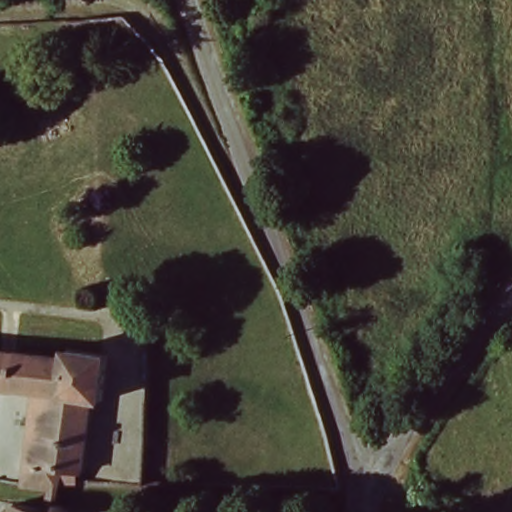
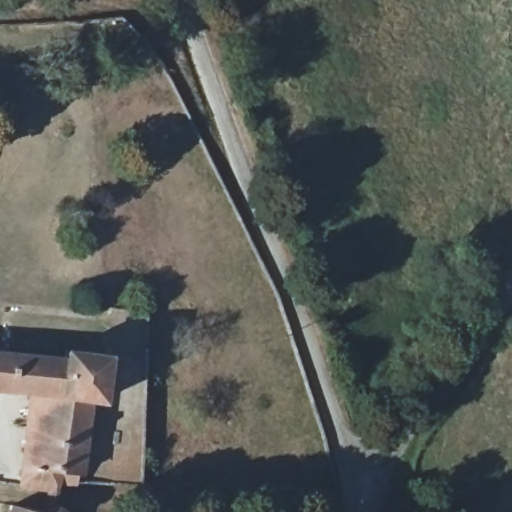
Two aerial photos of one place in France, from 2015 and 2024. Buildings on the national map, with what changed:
unchanged [(41,482),(46,388),(0,385),(0,352),(80,358),(81,348),(124,355),(121,400),(106,399),(99,469),(76,469),(75,480),(74,485),(41,482)]
unchanged [(61,511),(62,512),(57,512),(61,511)]

